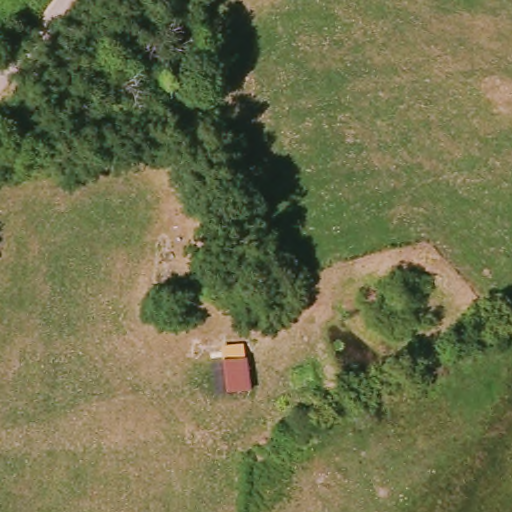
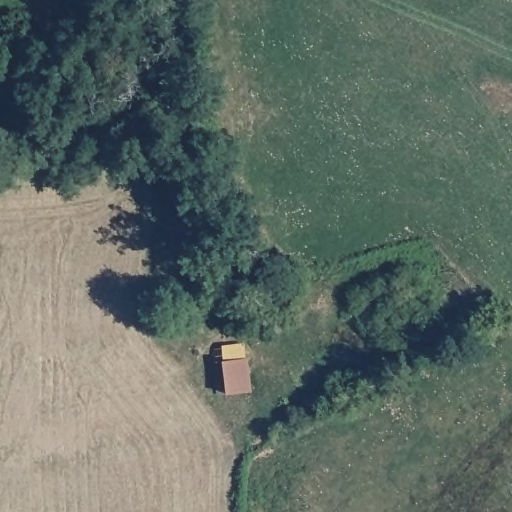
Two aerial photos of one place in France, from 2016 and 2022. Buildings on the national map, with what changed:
unchanged [(250,393),(227,396),(222,346),(244,344),(250,393)]

